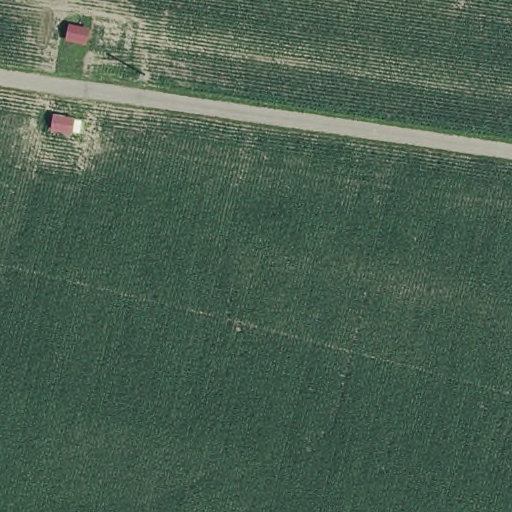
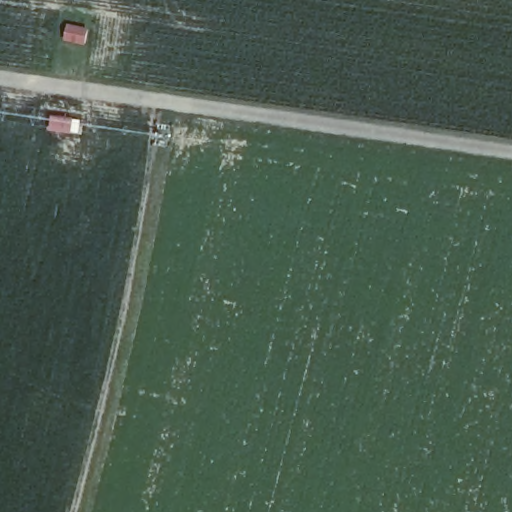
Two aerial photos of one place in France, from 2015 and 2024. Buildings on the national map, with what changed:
unchanged [(89,28),(85,41),(65,36),(69,23),(89,28)]
unchanged [(72,115),(70,128),(51,125),(52,112),(72,115)]

